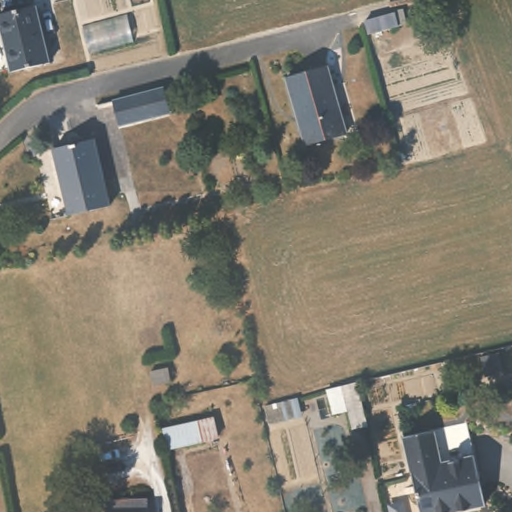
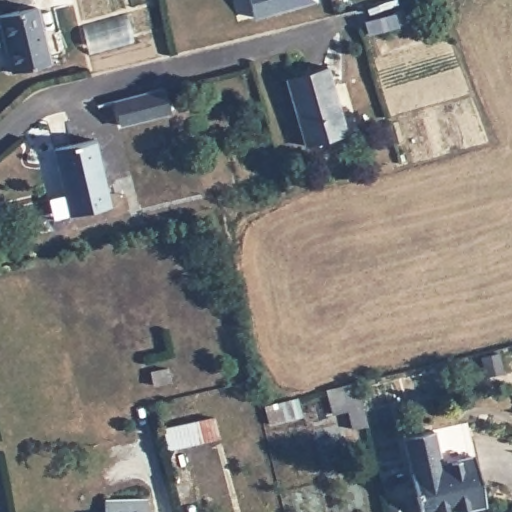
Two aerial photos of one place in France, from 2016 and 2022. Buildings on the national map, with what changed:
new [(254,19),(248,0),(316,0),(316,2),(254,19)]
unchanged [(34,9),(47,65),(12,73),(0,17),(34,9)]
unchanged [(328,73),(344,137),(305,148),(288,82),(328,73)]
unchanged [(161,90),(167,118),(114,129),(107,103),(161,90)]
unchanged [(94,146),(108,213),(66,221),(53,155),(94,146)]
unchanged [(340,390),(345,388),(348,388),(361,414),(345,418),(330,421),(317,395),(340,390)]
unchanged [(211,422),(216,442),(182,450),(166,453),(161,434),(211,422)]
unchanged [(484,510),(477,512),(418,512),(402,444),(465,430),(484,510)]
unchanged [(150,506),(150,512),(105,512),(105,507),(150,506)]

